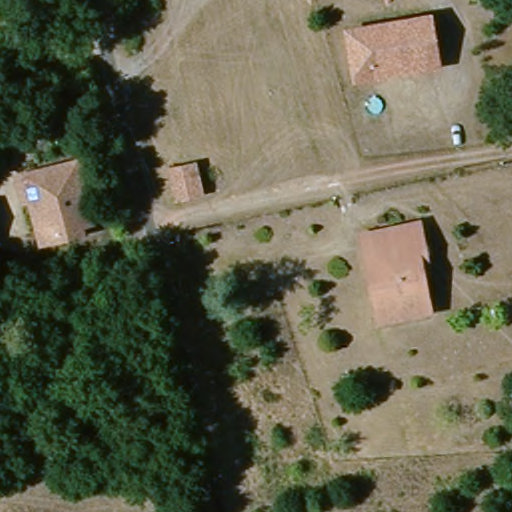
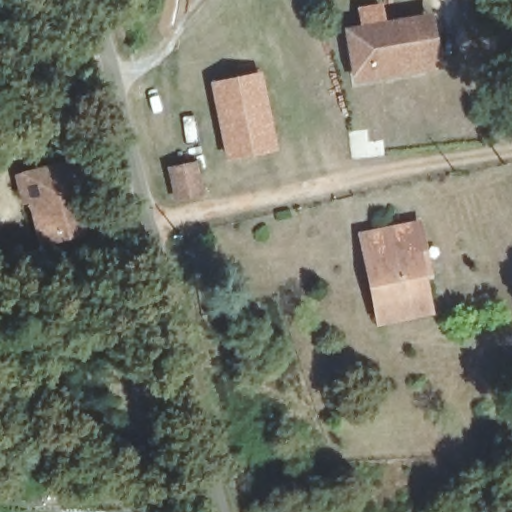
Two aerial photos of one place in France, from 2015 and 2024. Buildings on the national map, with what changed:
unchanged [(442,67),(353,82),(343,29),(432,13),(442,67)]
new [(259,75),(272,149),(226,158),(214,84),(259,75)]
unchanged [(197,163),(204,192),(178,199),(172,170),(197,163)]
unchanged [(86,225),(67,229),(68,234),(48,239),(34,231),(27,201),(31,200),(30,194),(20,196),(16,178),(73,165),(86,225)]
unchanged [(362,238),(377,235),(428,226),(431,244),(436,270),(423,271),(428,311),(378,321),(374,305),(373,300),(362,238)]

